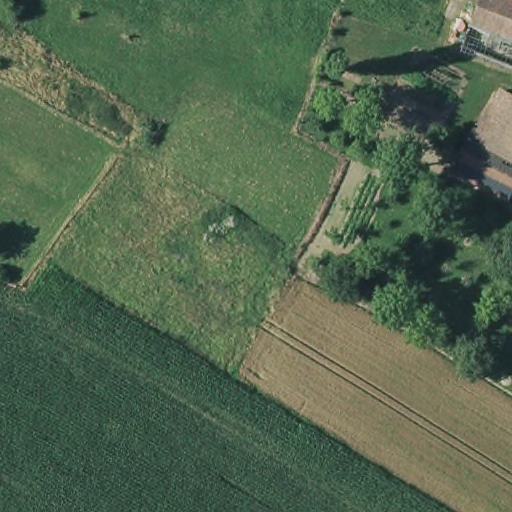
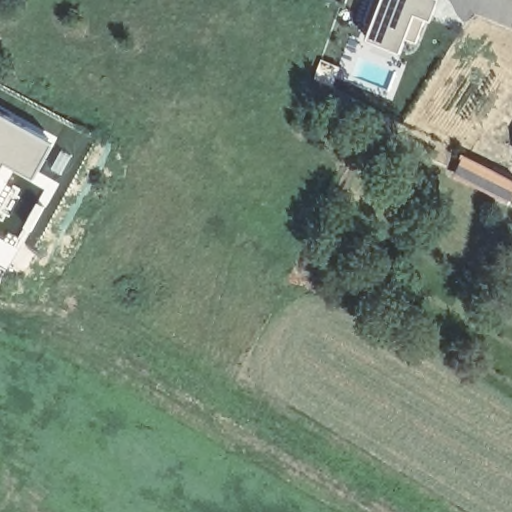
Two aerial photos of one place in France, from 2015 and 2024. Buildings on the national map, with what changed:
new [(427,22),(424,21),(415,44),(402,39),(395,54),(362,41),(379,0),(434,0),(427,22)]
demolished [(431,15),(403,6),(405,0),(436,0),(431,15)]
new [(55,141),(38,179),(6,163),(0,174),(0,111),(55,141)]

